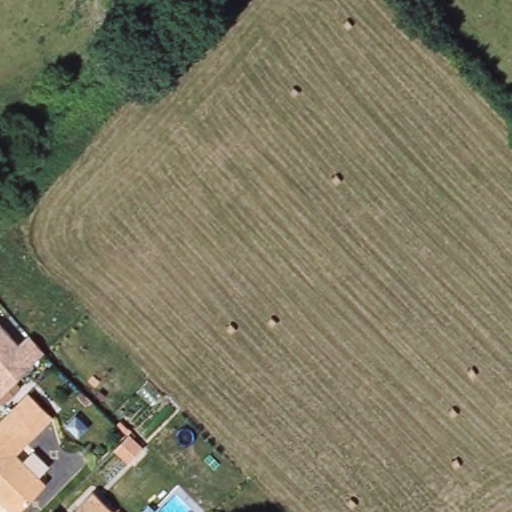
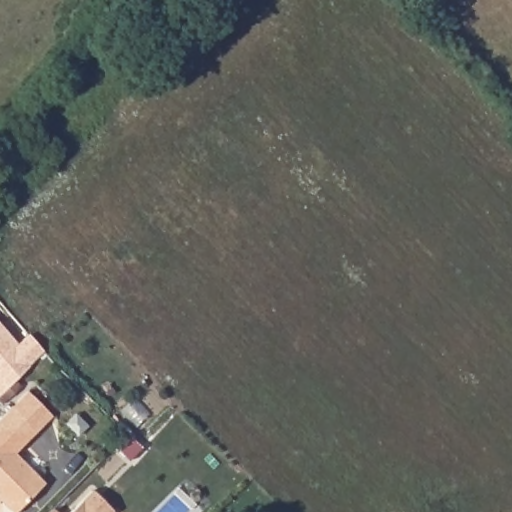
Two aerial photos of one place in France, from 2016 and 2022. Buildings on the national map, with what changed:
unchanged [(1,313),(23,336),(34,325),(53,344),(5,391),(0,386),(0,314),(1,313)]
unchanged [(17,404),(41,428),(19,450),(49,480),(17,510),(0,493),(0,421),(17,404)]
unchanged [(91,512),(105,498),(119,512),(91,512)]

